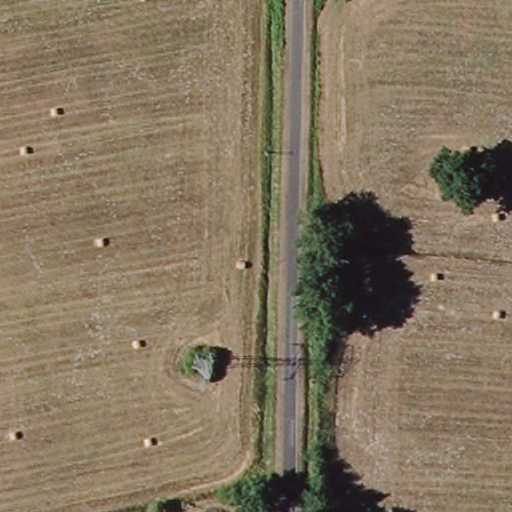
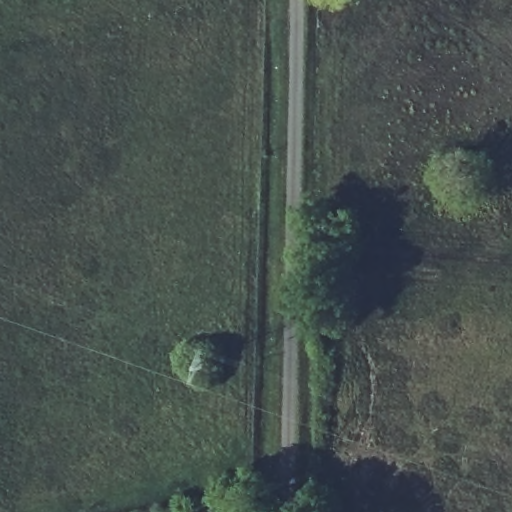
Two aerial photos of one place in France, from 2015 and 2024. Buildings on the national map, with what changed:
[]

